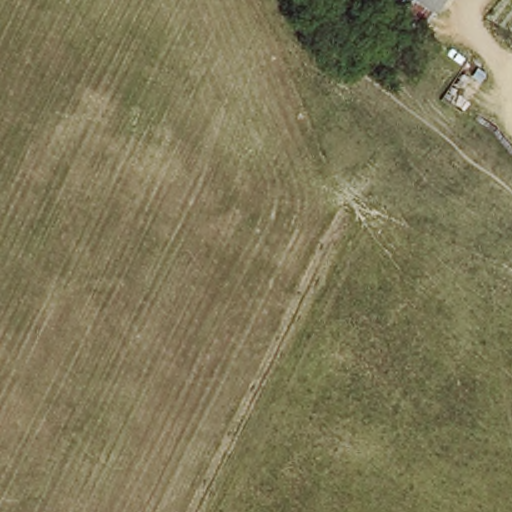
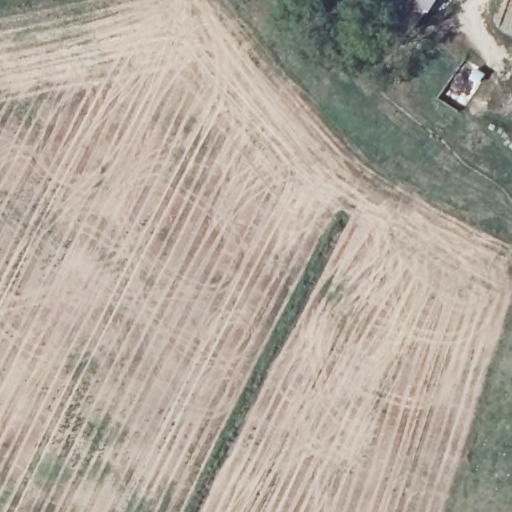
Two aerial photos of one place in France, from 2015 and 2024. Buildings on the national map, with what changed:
unchanged [(421,19),(397,0),(433,0),(421,19)]

